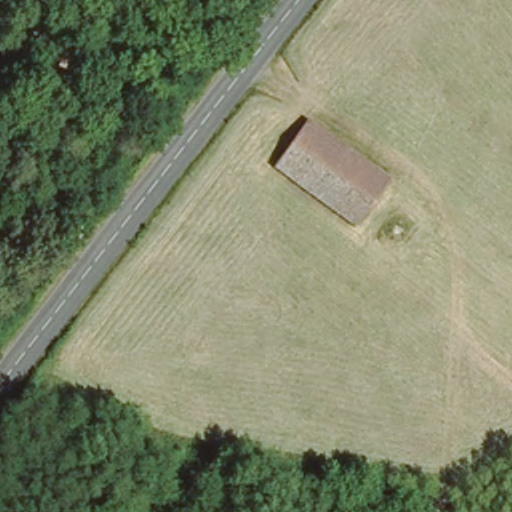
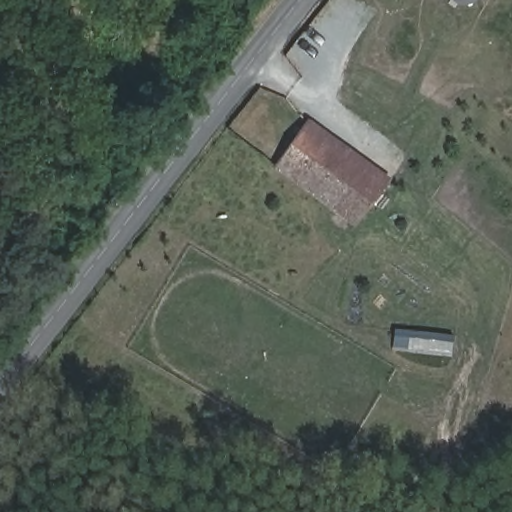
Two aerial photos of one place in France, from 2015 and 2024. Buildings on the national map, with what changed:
unchanged [(391,175),(361,218),(278,160),(310,118),(391,175)]

